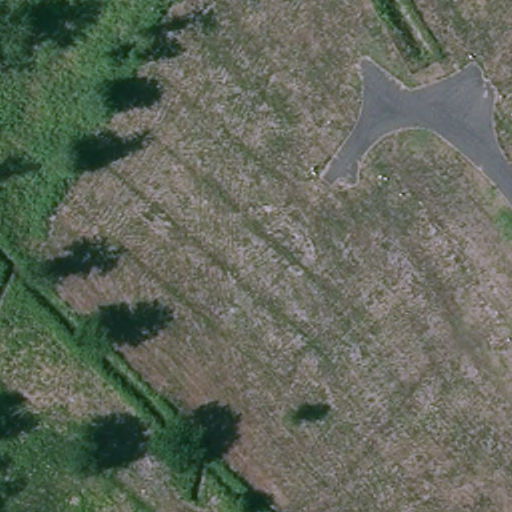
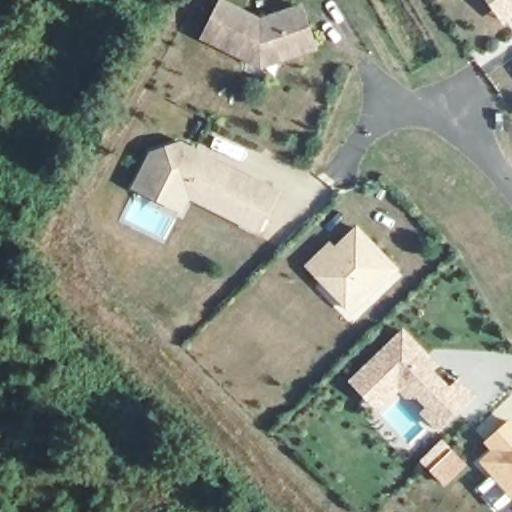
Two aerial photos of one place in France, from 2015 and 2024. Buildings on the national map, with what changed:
new [(503,25),(485,0),(512,0),(512,18),(503,25)]
new [(265,65),(220,42),(237,5),(277,25),(318,11),(332,53),(292,66),(278,71),(265,65)]
new [(181,140),(197,148),(199,143),(214,150),(210,155),(282,190),(262,233),(190,199),(184,213),(132,188),(150,150),(181,140)]
new [(335,246),(357,224),(400,268),(352,315),(303,265),(330,240),(335,246)]
new [(441,364),(435,370),(450,385),(458,376),(477,394),(440,433),(420,413),(427,407),(418,398),(407,399),(400,391),(378,412),(347,381),(403,328),(441,364)]
new [(467,464),(445,487),(419,460),(442,438),(467,464)]
new [(504,466),(512,459),(512,475),(504,466)]

